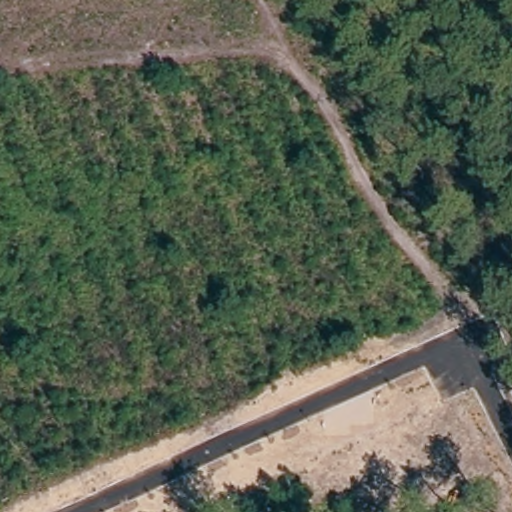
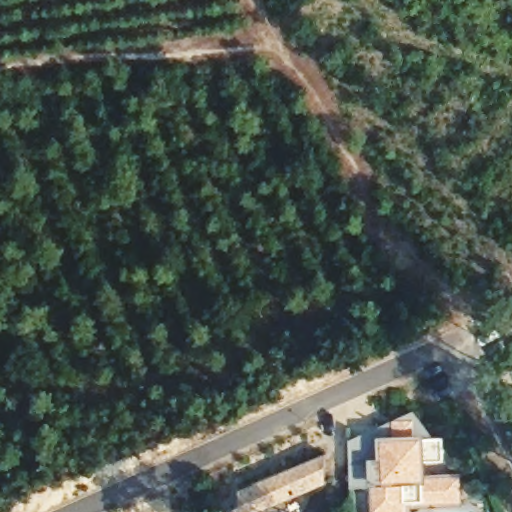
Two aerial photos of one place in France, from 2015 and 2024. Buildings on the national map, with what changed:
new [(416,410),(436,438),(416,439),(415,420),(395,421),(396,439),(384,440),(385,461),(352,463),(351,439),(416,410)]
new [(463,499),(435,501),(408,502),(408,512),(373,512),(373,487),(353,487),(352,463),(385,461),(384,440),(396,439),(395,421),(415,420),(416,439),(436,438),(445,437),(446,460),(425,461),(425,478),(433,477),(462,476),(463,499)]
new [(317,457),(328,480),(269,507),(258,512),(250,512),(241,492),(259,484),(317,457)]

